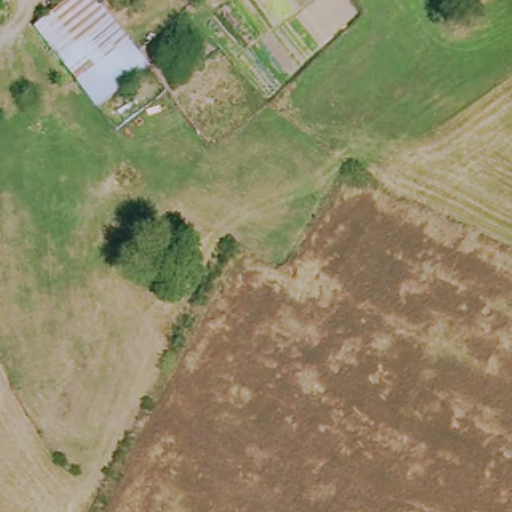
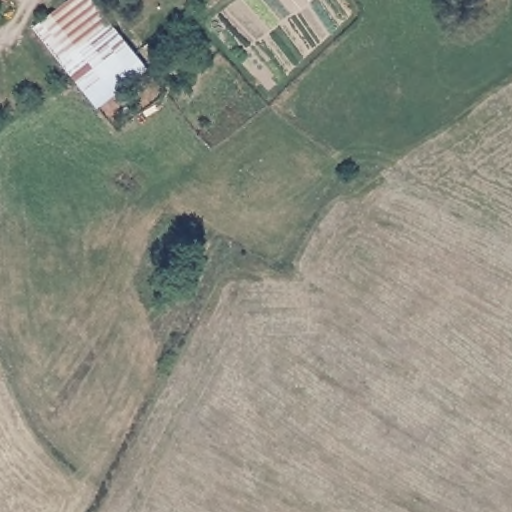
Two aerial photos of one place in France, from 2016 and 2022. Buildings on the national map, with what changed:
unchanged [(63,0),(87,0),(144,71),(93,107),(27,32),(63,0)]

